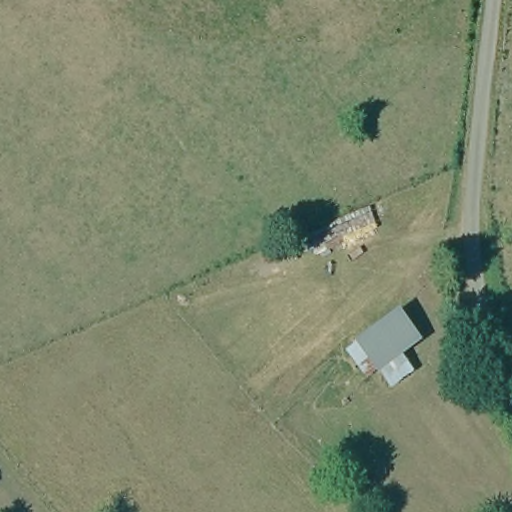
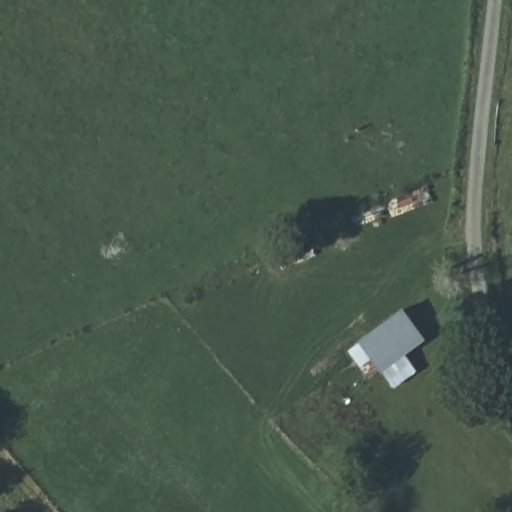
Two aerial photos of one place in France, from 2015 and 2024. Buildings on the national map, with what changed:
unchanged [(421,342),(367,379),(344,352),(400,311),(421,342)]

